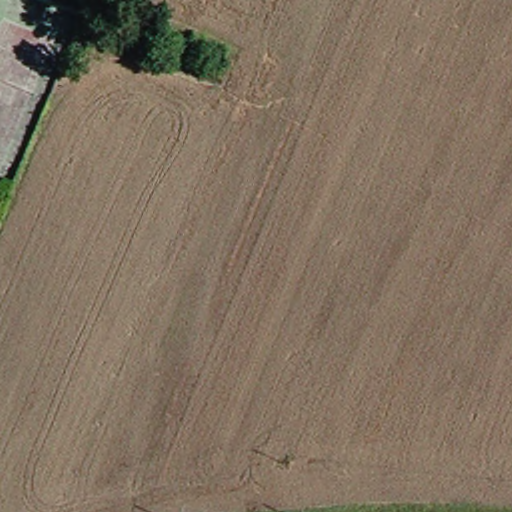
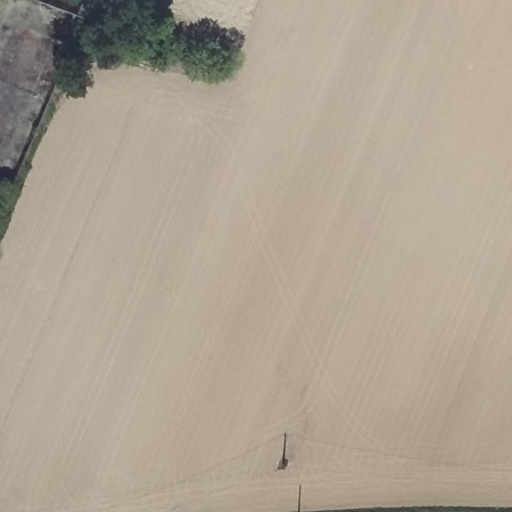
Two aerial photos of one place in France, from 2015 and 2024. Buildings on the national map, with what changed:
unchanged [(101,35),(88,30),(94,17),(107,22),(101,35)]

